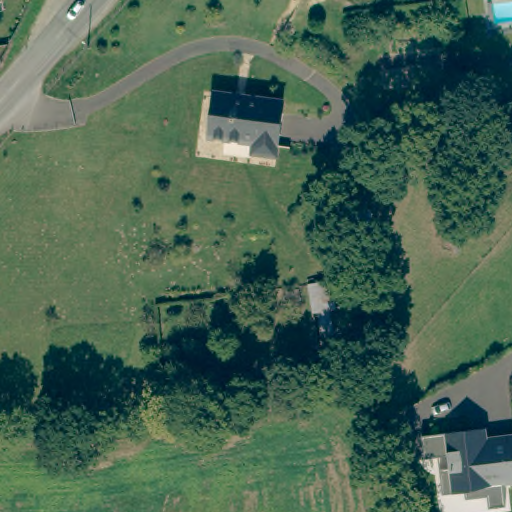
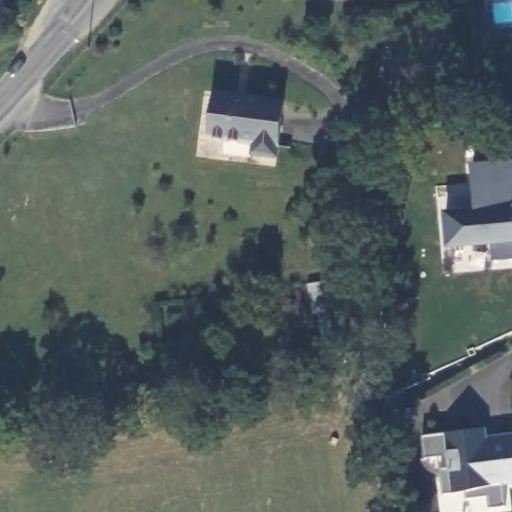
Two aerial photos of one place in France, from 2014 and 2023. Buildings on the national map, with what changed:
unchanged [(280,95),(271,152),(249,148),(250,137),(206,128),(212,86),(280,95)]
new [(446,249),(443,211),(475,208),(471,164),(512,160),(512,259),(494,261),(492,245),(446,249)]
unchanged [(484,442),(512,438),(512,486),(501,487),(504,510),(487,512),(485,500),(464,503),(463,496),(441,498),(438,473),(447,471),(445,460),(422,463),(419,440),(471,433),(483,432),(484,442)]

